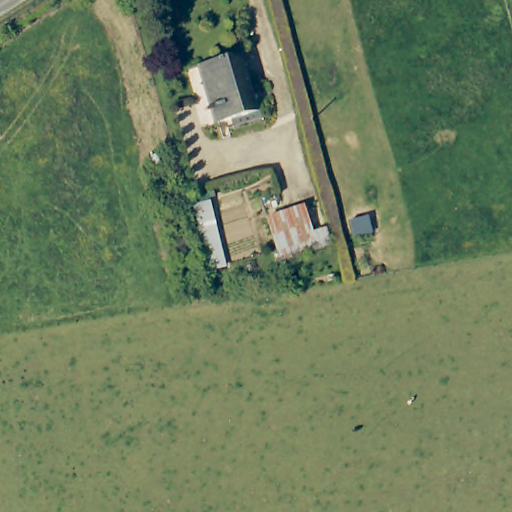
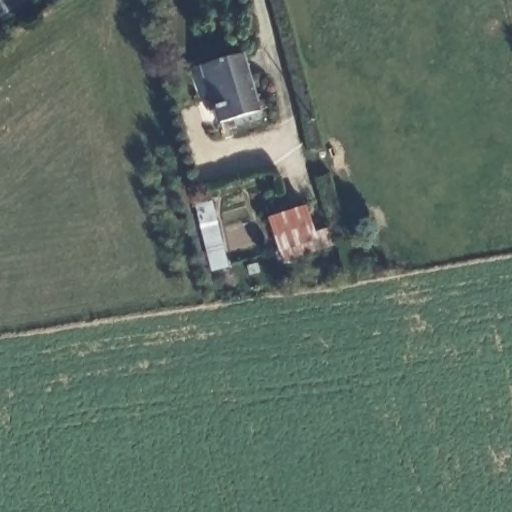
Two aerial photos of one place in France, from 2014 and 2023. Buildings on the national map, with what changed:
unchanged [(242,51),(258,112),(229,120),(216,123),(201,64),(217,59),(242,51)]
unchanged [(213,270),(197,208),(215,205),(230,264),(213,270)]
unchanged [(316,221),(327,217),(337,244),(286,262),(271,219),(310,205),(316,221)]

